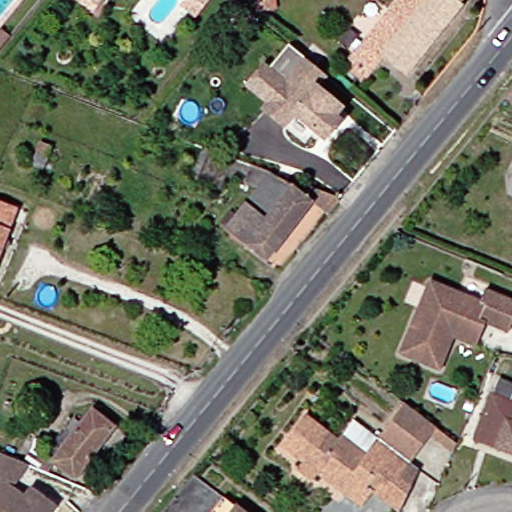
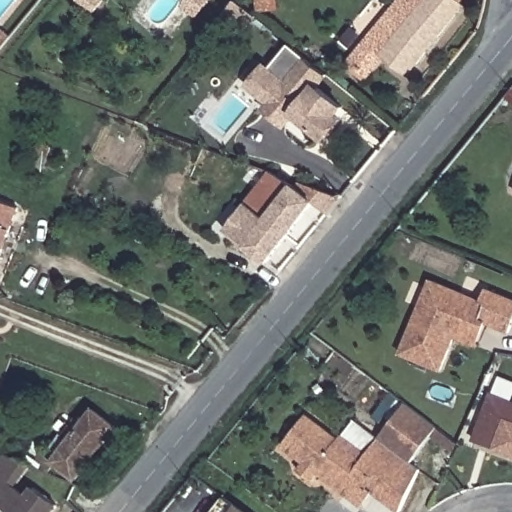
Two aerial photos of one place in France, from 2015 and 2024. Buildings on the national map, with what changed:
unchanged [(91,13),(75,0),(99,0),(100,1),(91,13)]
unchanged [(206,0),(193,16),(179,6),(183,0),(206,0)]
unchanged [(383,58),(367,76),(352,64),(402,0),(465,0),(462,3),(465,6),(407,76),(383,58)]
unchanged [(0,48),(0,31),(8,38),(0,48)]
unchanged [(303,142),(261,110),(266,104),(245,86),(260,67),(263,70),(284,43),(302,58),(322,74),(311,86),(337,108),(332,114),(337,120),(322,138),(312,130),(303,142)]
unchanged [(193,178),(185,176),(196,145),(204,148),(193,178)]
unchanged [(328,213),(315,204),(269,262),(229,231),(244,211),(259,191),(261,188),(257,185),(261,181),(265,183),(272,173),(298,189),(302,182),(342,197),(328,213)]
unchanged [(0,262),(0,201),(22,209),(0,262)]
unchanged [(458,337),(445,371),(404,354),(435,280),(485,301),(490,289),(512,298),(512,332),(490,323),(481,346),(458,337)]
unchanged [(479,439),(496,394),(512,401),(512,451),(479,439)]
unchanged [(341,491),(317,474),(311,482),(297,471),(303,463),(281,447),(305,415),(339,441),(354,421),(378,439),(405,404),(437,428),(411,463),(420,470),(397,510),(372,491),(361,506),(341,491)]
unchanged [(87,477),(54,452),(70,432),(74,435),(86,421),(91,424),(103,410),(126,428),(87,477)]
unchanged [(0,508),(6,502),(0,498),(0,464),(6,454),(27,463),(20,474),(28,480),(22,488),(33,496),(41,488),(62,505),(56,512),(0,512),(0,508)]
unchanged [(248,512),(217,512),(223,505),(229,497),(248,512)]

